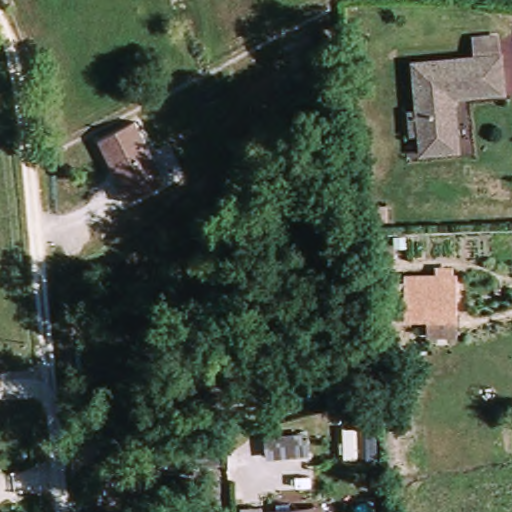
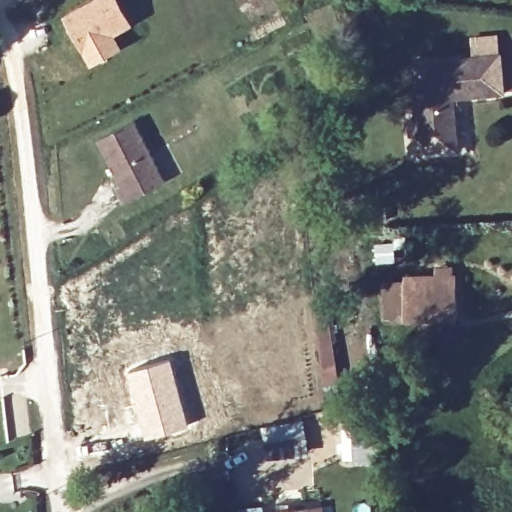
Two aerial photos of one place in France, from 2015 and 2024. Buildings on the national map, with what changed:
new [(99,0),(116,0),(128,22),(85,46),(70,17),(99,0)]
unchanged [(419,137),(413,62),(502,54),(505,92),(454,96),(459,150),(439,151),(421,153),(419,137)]
unchanged [(93,133),(130,115),(160,175),(119,196),(111,181),(116,178),(93,133)]
unchanged [(376,243),(393,242),(394,257),(376,258),(376,243)]
unchanged [(394,279),(411,279),(411,275),(443,275),(443,267),(459,266),(459,273),(463,273),(464,315),(413,317),(396,318),(394,279)]
new [(171,357),(189,423),(145,438),(125,371),(171,357)]
unchanged [(372,413),(378,456),(346,455),(344,416),(372,413)]
unchanged [(310,460),(261,463),(260,437),(308,434),(310,460)]
unchanged [(309,508),(310,512),(285,512),(309,508)]
unchanged [(260,512),(240,512),(239,509),(260,509),(260,512)]

